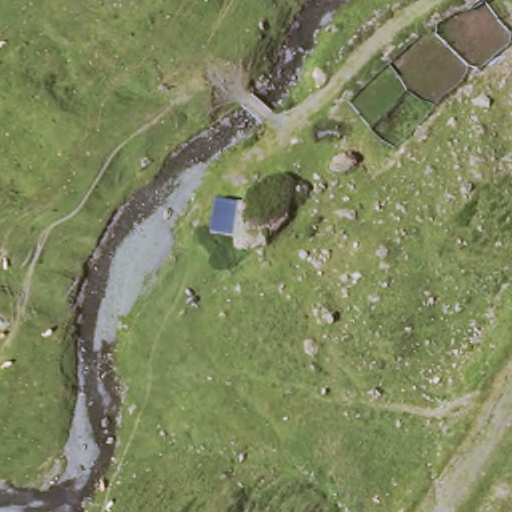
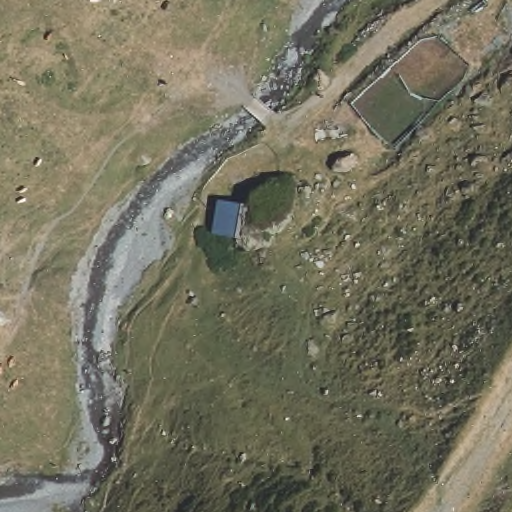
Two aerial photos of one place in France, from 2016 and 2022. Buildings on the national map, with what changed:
unchanged [(282,237),(270,234),(267,254),(239,249),(240,243),(205,236),(208,221),(213,198),(243,205),(245,195),(289,203),(282,237)]

